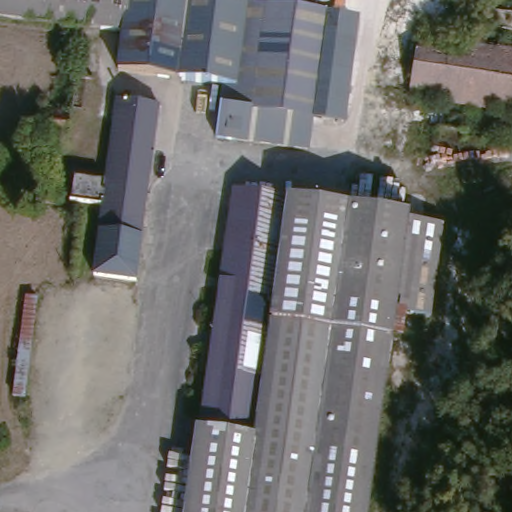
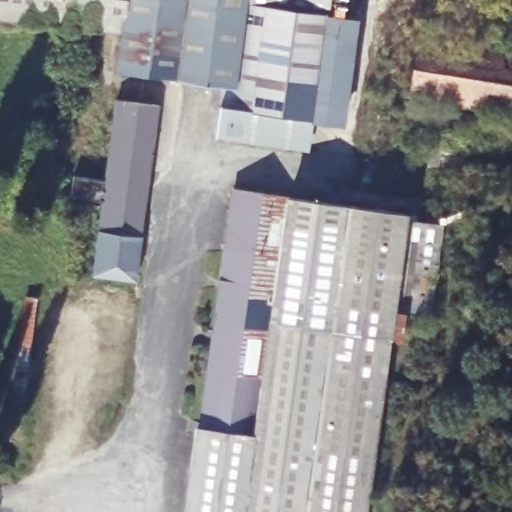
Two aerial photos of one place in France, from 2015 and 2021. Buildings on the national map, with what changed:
unchanged [(216,141),(218,113),(223,89),(115,77),(121,35),(0,23),(0,0),(329,0),(328,14),(357,16),(341,129),(312,129),(308,152),(216,141)]
unchanged [(512,57),(512,113),(391,94),(399,38),(512,57)]
unchanged [(119,109),(160,114),(137,285),(96,280),(119,109)]
unchanged [(37,114),(65,117),(63,139),(35,137),(37,114)]
unchanged [(30,159),(39,159),(39,153),(61,155),(59,180),(28,176),(30,159)]
unchanged [(227,183),(400,207),(397,232),(434,236),(428,279),(414,277),(408,313),(389,313),(365,512),(182,512),(211,301),(227,183)]
unchanged [(25,194),(56,197),(55,217),(23,212),(25,194)]

